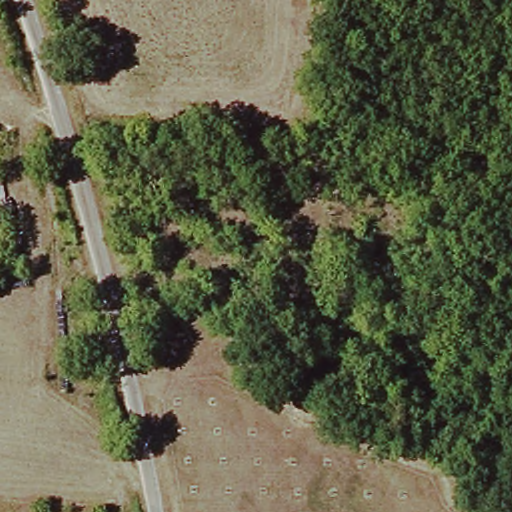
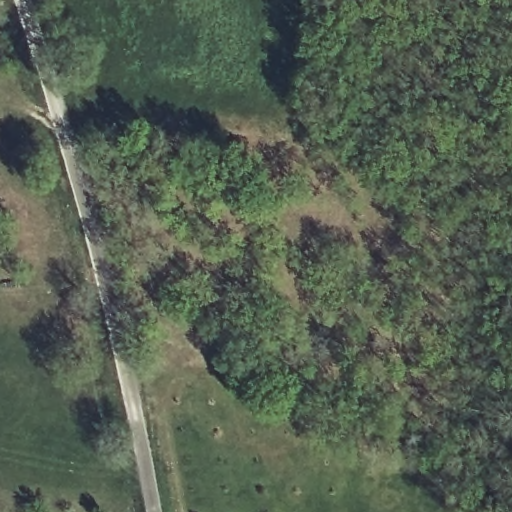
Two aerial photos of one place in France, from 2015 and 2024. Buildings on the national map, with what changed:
[]

